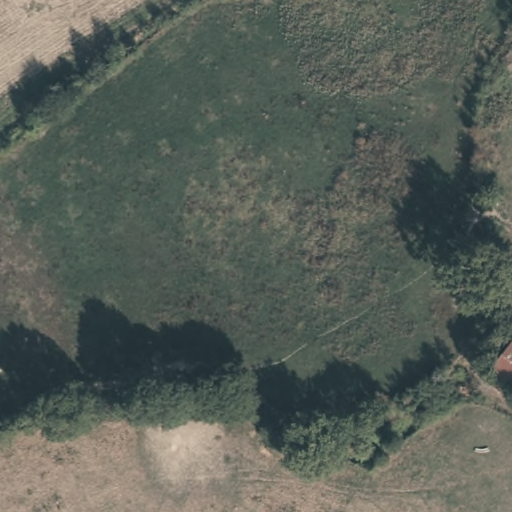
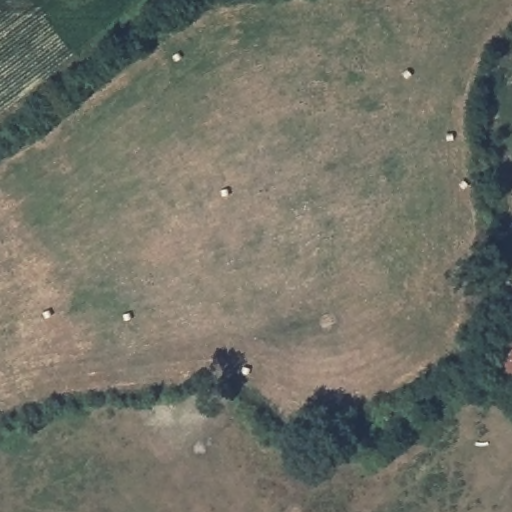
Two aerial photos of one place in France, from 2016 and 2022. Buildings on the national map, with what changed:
unchanged [(512,347),(512,383),(507,379),(499,368),(512,347)]

